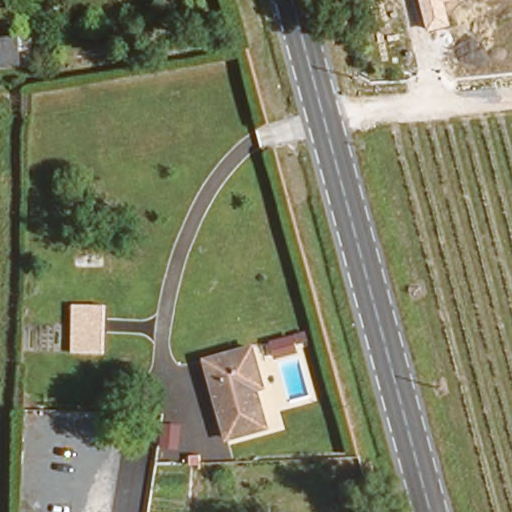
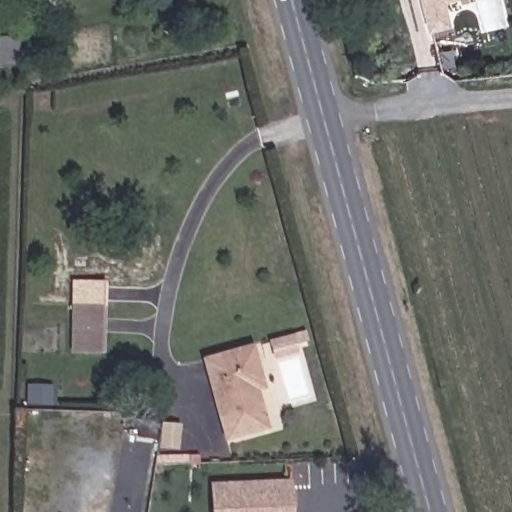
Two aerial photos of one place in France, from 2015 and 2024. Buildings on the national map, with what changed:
unchanged [(449,26),(425,32),(418,0),(454,0),(443,2),(449,26)]
unchanged [(75,295),(97,295),(98,344),(76,344),(75,295)]
unchanged [(243,384),(255,419),(223,430),(197,356),(253,335),(266,376),(243,384)]
new [(294,512),(218,512),(217,482),(293,479),(294,512)]

